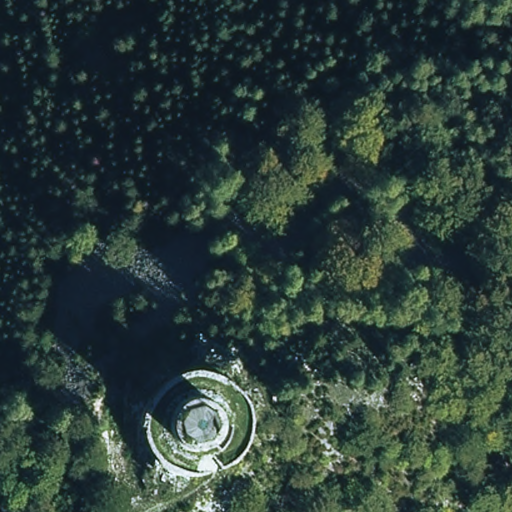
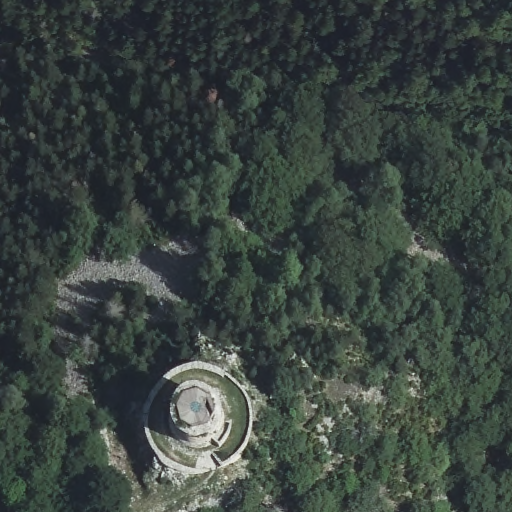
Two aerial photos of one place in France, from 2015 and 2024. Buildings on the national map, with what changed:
unchanged [(217,418),(219,431),(215,442),(207,449),(195,452),(182,450),(175,440),(174,423),(180,413),(190,408),(205,407),(217,418)]

